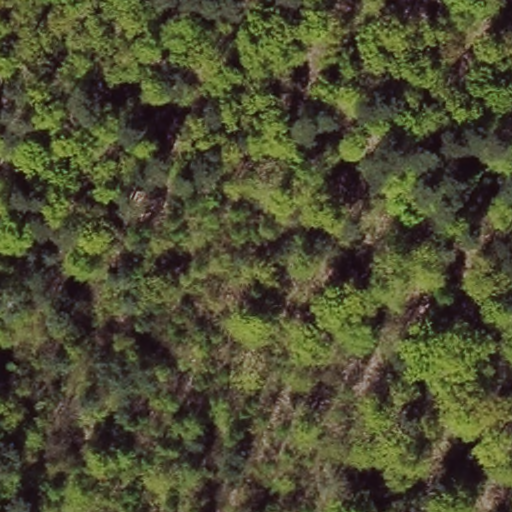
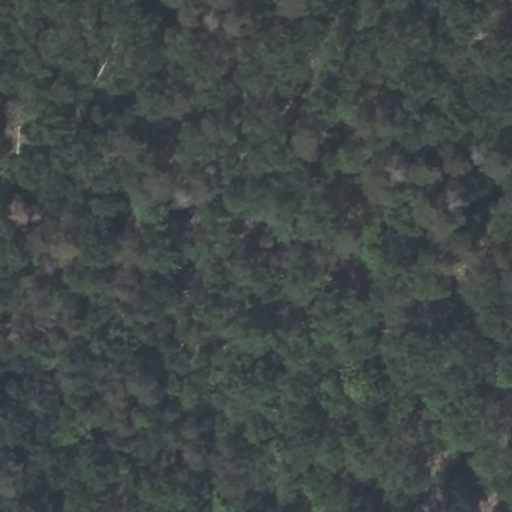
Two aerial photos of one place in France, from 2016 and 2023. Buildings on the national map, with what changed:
[]

